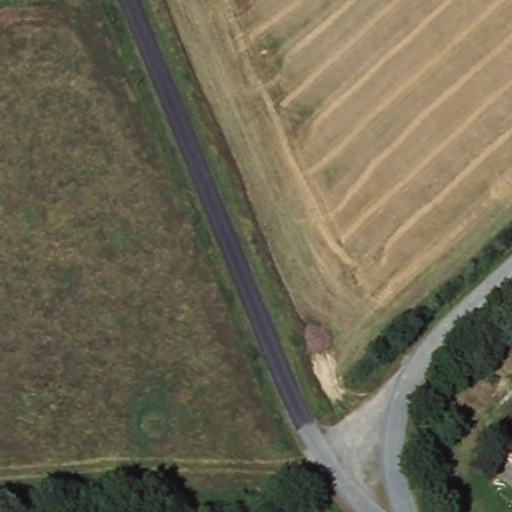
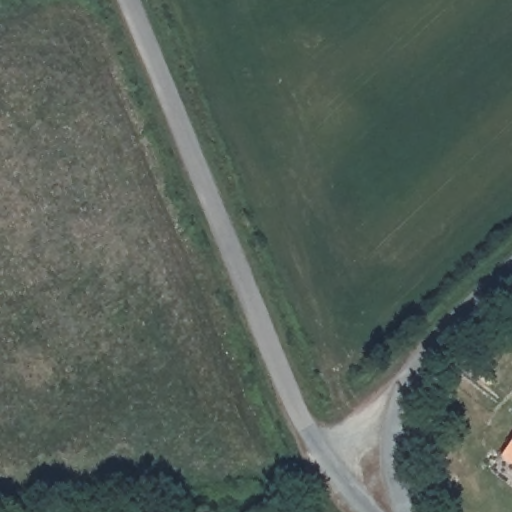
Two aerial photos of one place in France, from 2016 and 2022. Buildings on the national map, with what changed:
unchanged [(503,452),(512,441),(512,459),(503,452)]

